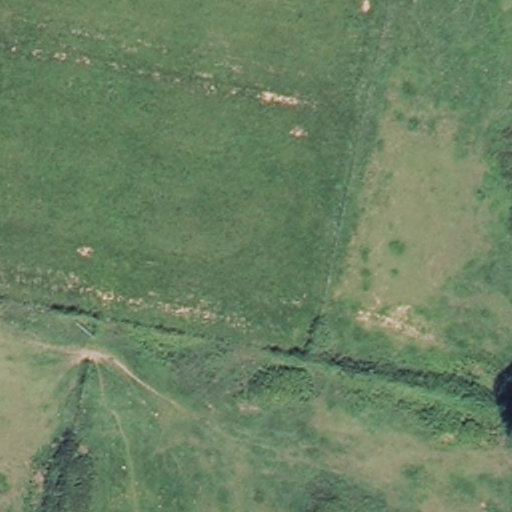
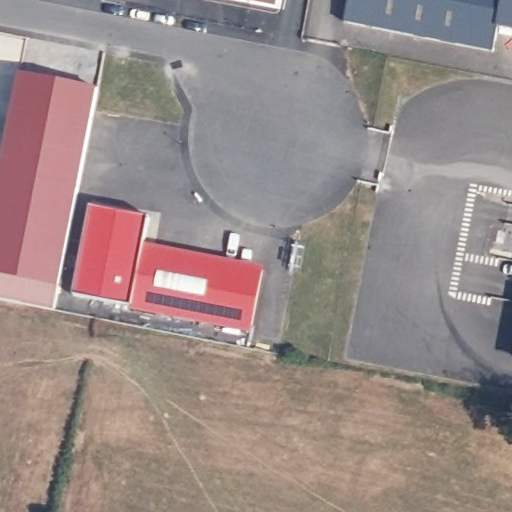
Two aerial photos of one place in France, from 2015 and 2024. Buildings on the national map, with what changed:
new [(231,0),(282,0),(280,9),(231,0)]
new [(498,27),(493,52),(343,21),(348,0),(512,0),(512,30),(498,27)]
new [(95,85),(57,288),(0,276),(0,165),(18,71),(95,85)]
new [(148,218),(143,245),(264,267),(251,334),(131,307),(72,296),(89,208),(148,218)]

